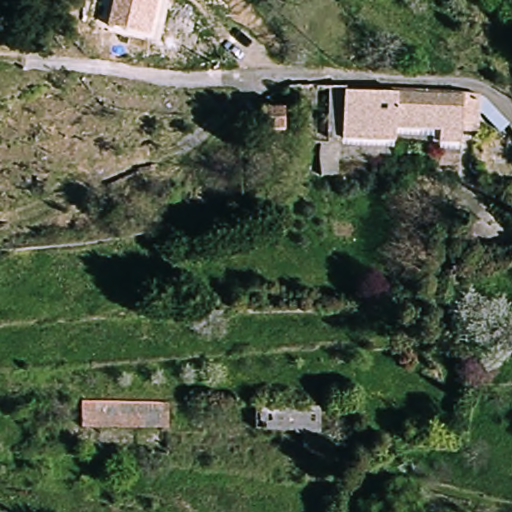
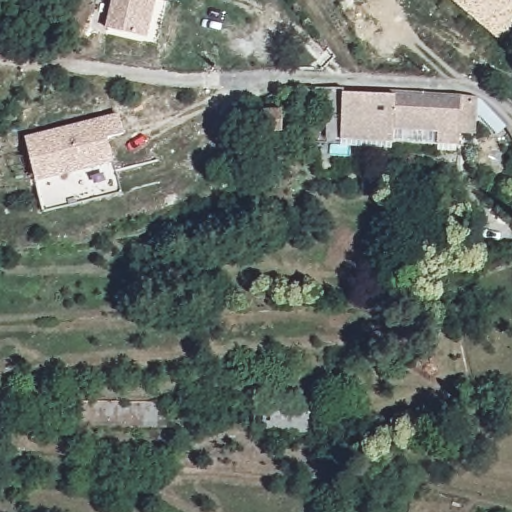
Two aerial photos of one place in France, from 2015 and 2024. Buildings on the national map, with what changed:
unchanged [(109,27),(114,0),(165,0),(167,2),(158,44),(150,38),(109,27)]
unchanged [(457,134),(456,146),(434,145),(433,132),(392,130),(391,142),(329,138),(329,89),(465,94),(473,106),(470,133),(457,134)]
unchanged [(278,116),(280,132),(259,132),(260,112),(278,110),(278,116)]
new [(118,114),(122,134),(105,140),(110,162),(30,180),(22,137),(118,114)]
unchanged [(512,188),(512,199),(507,191),(512,188)]
unchanged [(163,397),(163,427),(81,425),(78,402),(163,397)]
unchanged [(318,406),(317,430),(254,428),(253,405),(318,406)]

